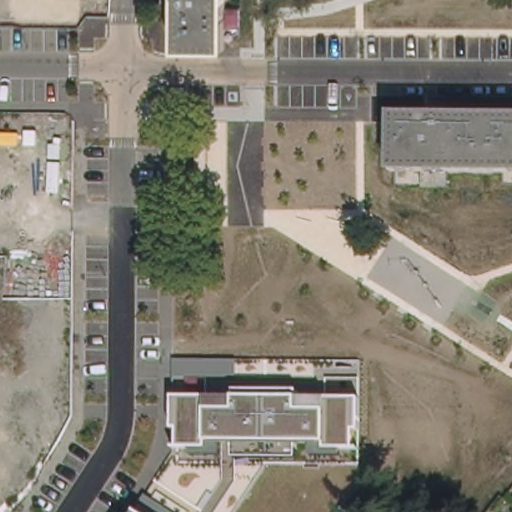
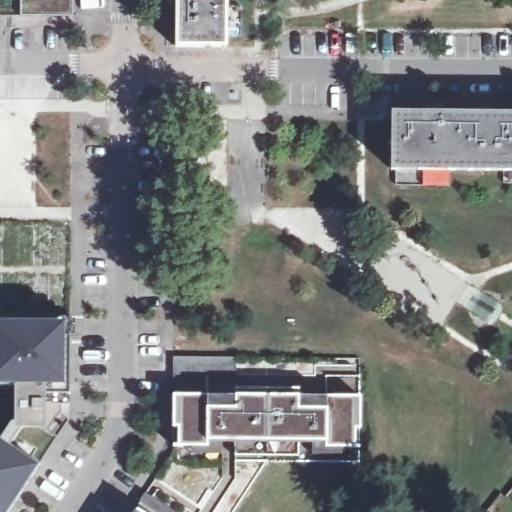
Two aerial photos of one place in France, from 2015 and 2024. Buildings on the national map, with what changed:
new [(22,14),(22,0),(71,0),(70,13),(22,14)]
unchanged [(392,167),(393,111),(512,113),(512,168),(392,167)]
new [(8,512),(0,512),(0,436),(13,418),(13,384),(0,384),(0,317),(71,317),(70,401),(59,401),(60,411),(53,411),(49,416),(42,416),(43,425),(23,424),(11,443),(40,463),(8,512)]
unchanged [(234,359),(234,377),(172,377),(172,359),(234,359)]
unchanged [(358,430),(353,430),(353,448),(340,448),(340,456),(311,455),(310,443),(296,442),(296,458),(234,457),(233,442),(218,442),(219,456),(191,455),(191,447),(176,447),(177,428),(172,428),(173,397),(234,396),(234,390),(297,390),(298,397),(359,398),(358,430)]
unchanged [(144,495),(171,512),(137,512),(144,495)]

